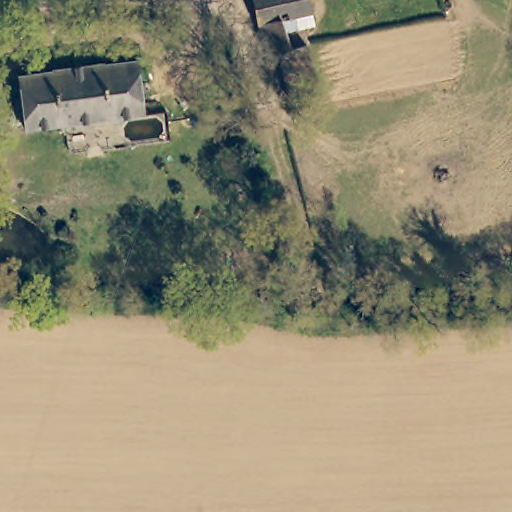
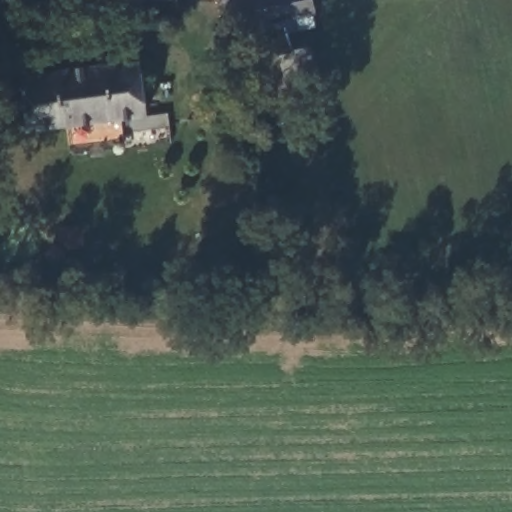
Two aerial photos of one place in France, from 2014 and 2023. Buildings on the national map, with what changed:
unchanged [(315,11),(293,15),(296,28),(286,30),(290,47),(278,52),(266,55),(251,0),(312,0),(315,11)]
unchanged [(290,47),(303,45),(318,91),(291,99),(278,52),(290,47)]
unchanged [(143,118),(26,134),(22,109),(13,111),(11,101),(21,98),(19,77),(52,74),(52,70),(99,63),(99,67),(136,62),(143,118)]
unchanged [(253,269),(256,289),(242,290),(240,271),(253,269)]

